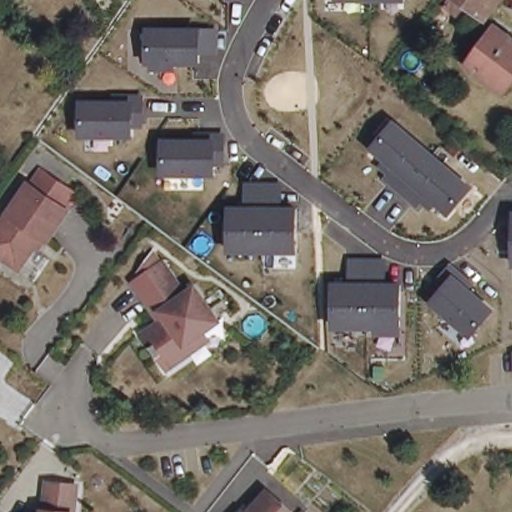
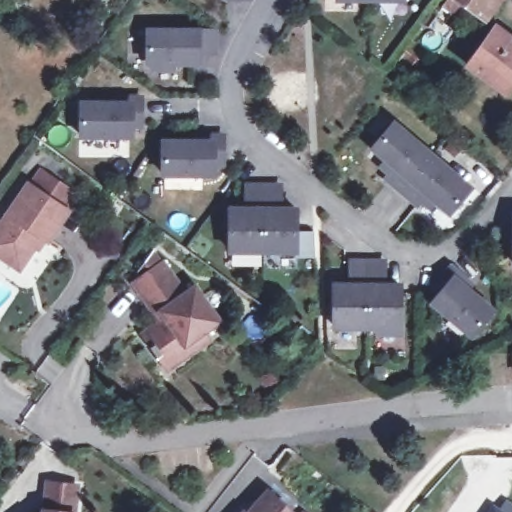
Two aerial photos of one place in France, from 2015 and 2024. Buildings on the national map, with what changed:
unchanged [(252,1),(227,1),(227,0),(251,0),(252,1)]
unchanged [(336,1),(336,0),(406,0),(406,2),(336,1)]
unchanged [(447,0),(489,0),(482,10),(477,6),(468,16),(457,8),(447,0)]
unchanged [(512,42),(512,80),(502,93),(465,65),(493,27),(512,42)]
unchanged [(218,54),(200,54),(200,65),(175,65),(176,70),(151,70),(151,65),(145,65),(145,29),(220,29),(218,54)]
unchanged [(134,129),(134,139),(80,139),(80,100),(112,100),(112,95),(144,95),(145,128),(134,129)]
unchanged [(473,187),(450,215),(437,205),(431,211),(421,204),(417,209),(382,181),(387,175),(378,168),(383,161),(368,150),(394,120),(473,187)]
unchanged [(226,166),(216,166),(215,177),(162,177),(162,139),(197,139),(197,134),(227,135),(226,166)]
unchanged [(7,257),(0,253),(0,227),(30,182),(33,185),(42,171),(75,194),(65,208),(69,210),(48,240),(43,236),(25,263),(22,268),(7,257)]
unchanged [(228,254),(230,206),(247,205),(245,185),(282,185),(283,206),(298,207),(298,253),(228,254)]
unchanged [(375,336),(376,328),(332,330),(332,282),(349,281),(349,260),(387,260),(387,282),(402,282),(402,335),(375,336)]
unchanged [(195,350),(172,366),(165,355),(162,356),(155,345),(157,344),(149,332),(166,320),(161,313),(139,280),(167,261),(189,293),(199,285),(222,318),(207,330),(212,337),(195,350)]
unchanged [(473,340),(428,302),(440,288),(434,283),(451,263),(477,284),(471,290),(495,310),(473,340)]
unchanged [(43,480),(74,484),(71,512),(37,512),(40,510),(43,480)]
unchanged [(290,506),(285,512),(247,512),(267,487),(290,506)]
new [(500,508),(507,498),(512,502),(512,512),(487,512),(492,504),(500,508)]
unchanged [(241,512),(243,510),(246,512),(241,512)]

